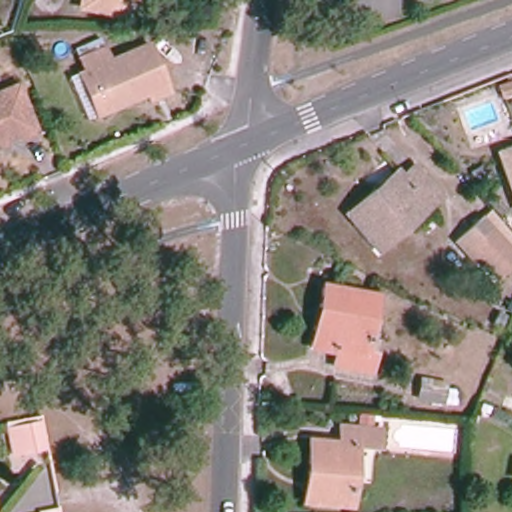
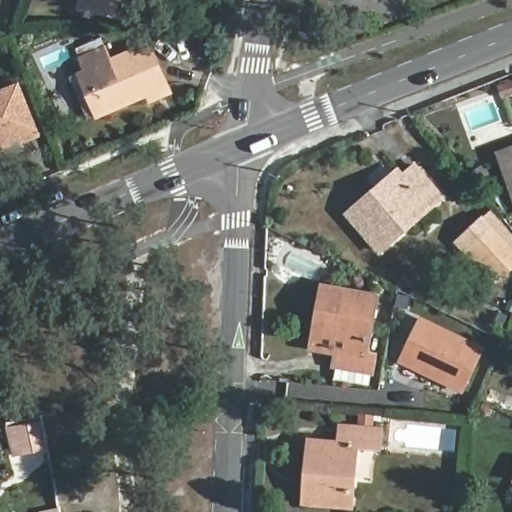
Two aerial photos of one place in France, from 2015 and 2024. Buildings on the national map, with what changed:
unchanged [(129,0),(125,17),(80,8),(82,0),(129,0)]
unchanged [(83,71),(77,57),(101,47),(107,61),(146,45),(166,91),(147,100),(144,92),(142,87),(135,90),(137,95),(100,111),(83,71)]
unchanged [(501,86),(512,83),(512,93),(503,95),(501,86)]
unchanged [(39,134),(23,140),(21,135),(0,143),(0,93),(19,85),(39,134)]
unchanged [(493,150),(512,143),(512,204),(493,150)]
unchanged [(442,196),(379,252),(347,215),(370,195),(401,169),(406,174),(416,165),(442,196)]
unchanged [(474,256),(466,247),(492,224),(512,248),(512,257),(500,267),(490,275),(474,256)]
unchanged [(371,301),(361,354),(370,355),(367,371),(332,365),(334,350),(316,347),(308,346),(316,307),(318,291),(371,301)]
new [(396,362),(419,315),(485,346),(462,394),(396,362)]
demolished [(421,398),(423,380),(448,385),(448,388),(447,393),(446,402),(421,398)]
unchanged [(302,482),(306,440),(337,443),(338,426),(376,430),(375,447),(352,445),(347,506),(307,503),(301,502),(302,482)]
unchanged [(19,428),(24,452),(14,455),(9,431),(19,428)]

